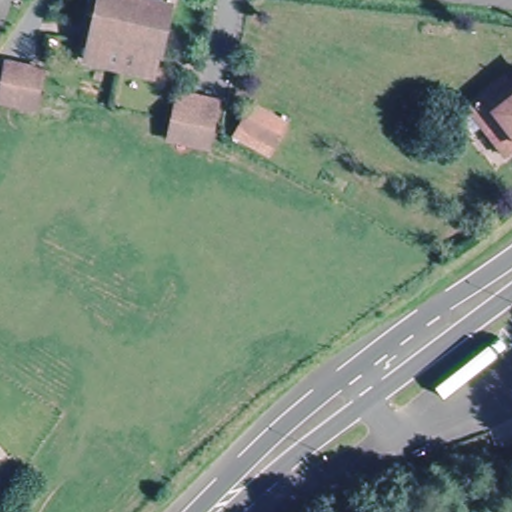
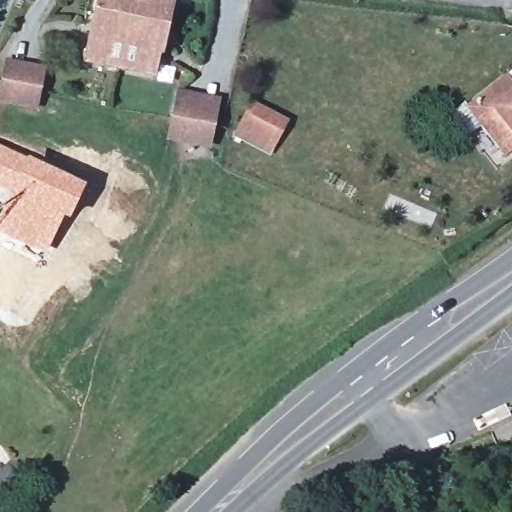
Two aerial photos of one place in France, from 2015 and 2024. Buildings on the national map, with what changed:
unchanged [(80,57),(98,0),(148,0),(166,4),(150,74),(80,57)]
unchanged [(0,99),(0,91),(7,75),(12,62),(48,76),(42,90),(32,113),(0,99)]
unchanged [(471,104),(506,77),(512,85),(512,150),(509,153),(471,104)]
unchanged [(210,147),(170,137),(172,90),(216,96),(210,147)]
unchanged [(278,115),(271,135),(241,122),(249,101),(278,115)]
new [(86,186),(69,222),(63,220),(45,255),(0,233),(0,221),(4,215),(1,213),(10,196),(0,190),(0,145),(86,186)]

